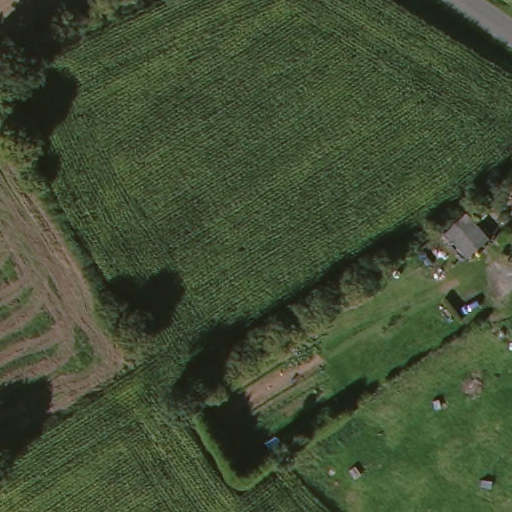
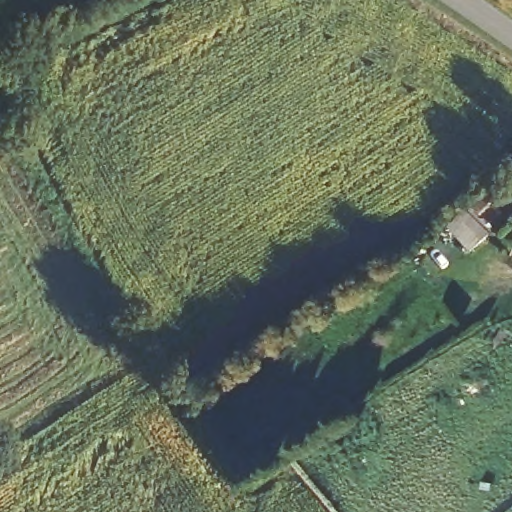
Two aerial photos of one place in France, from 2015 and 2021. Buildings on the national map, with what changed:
unchanged [(452,220),(465,206),(475,214),(462,228),(478,242),(458,267),(430,242),(450,219),(452,220)]

